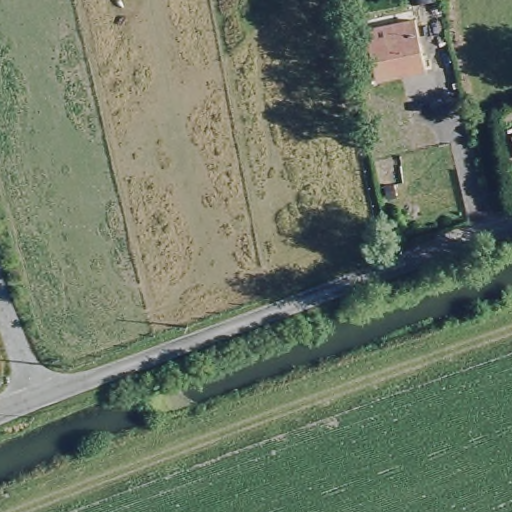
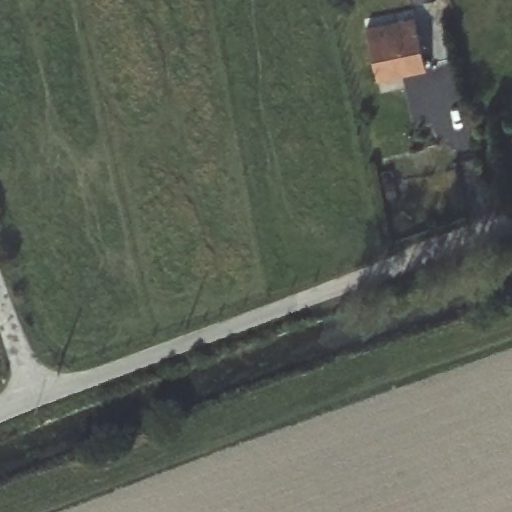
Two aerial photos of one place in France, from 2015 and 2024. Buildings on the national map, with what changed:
unchanged [(370,74),(360,28),(411,15),(421,62),(370,74)]

